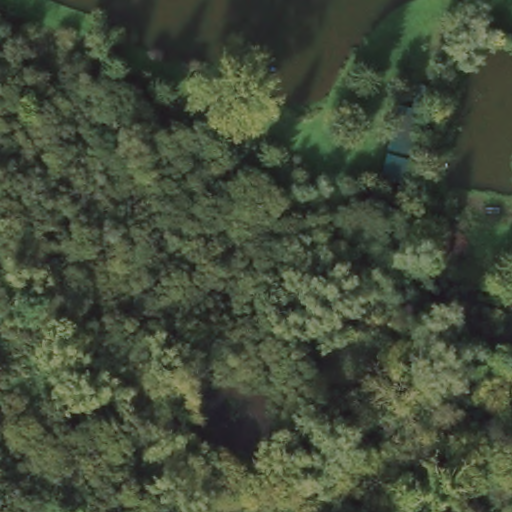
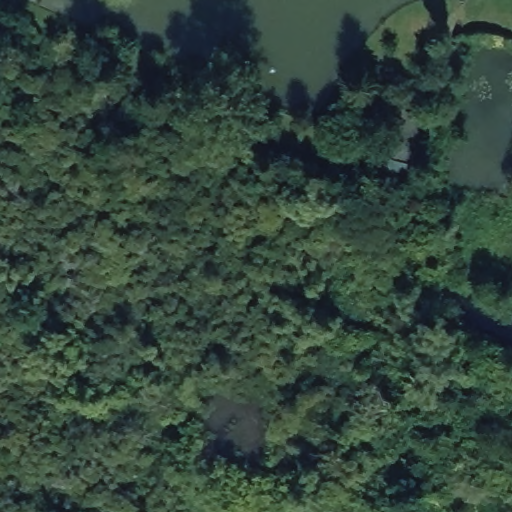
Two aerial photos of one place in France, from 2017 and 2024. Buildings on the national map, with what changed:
unchanged [(397,107),(411,107),(416,84),(428,87),(407,186),(380,179),(397,107)]

